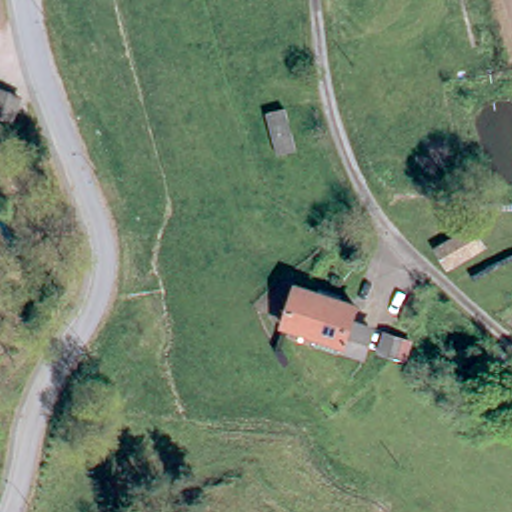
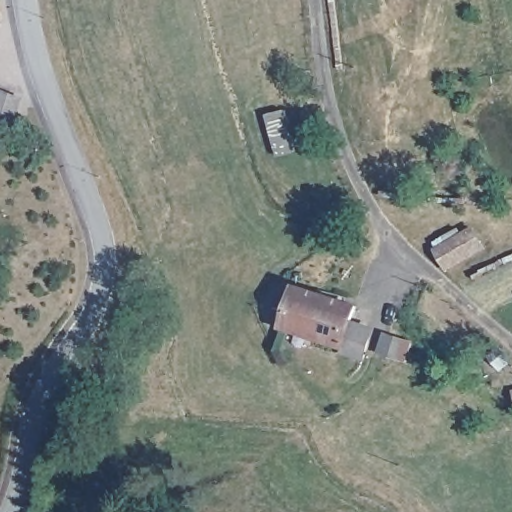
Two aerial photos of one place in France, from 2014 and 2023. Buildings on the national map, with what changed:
unchanged [(24,100),(18,116),(0,105),(0,100),(3,92),(24,100)]
unchanged [(280,98),(293,142),(273,148),(260,104),(280,98)]
unchanged [(353,330),(372,335),(365,362),(342,355),(343,348),(287,333),(295,299),(357,315),(353,330)]

